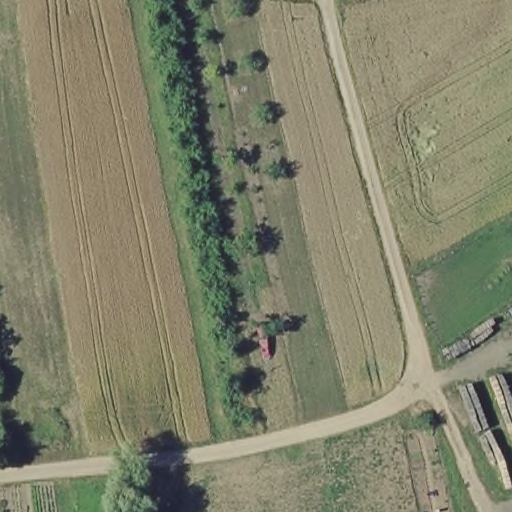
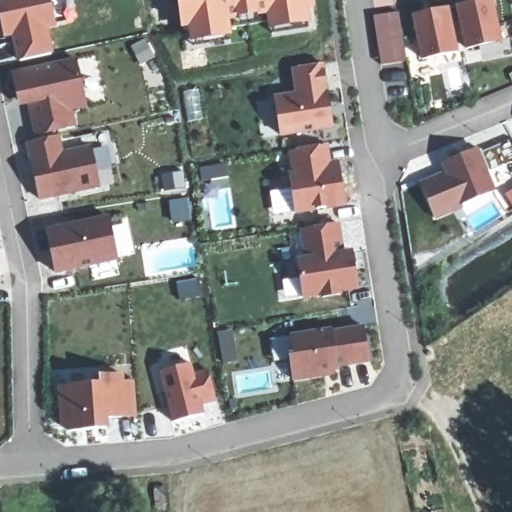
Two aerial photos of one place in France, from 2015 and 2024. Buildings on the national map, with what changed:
new [(45,26),(51,54),(20,61),(11,19),(1,21),(0,16),(0,0),(50,0),(55,24),(45,26)]
new [(306,6),(307,17),(306,18),(270,23),(270,21),(229,27),(230,30),(192,36),(190,25),(182,26),(178,0),(313,0),(314,5),(306,6)]
new [(481,0),(492,0),(492,1),(501,41),(466,49),(457,5),(475,1),(481,0)]
new [(413,15),(447,8),(456,51),(422,59),(413,15)]
new [(373,15),(398,11),(402,36),(405,61),(381,65),(377,40),(373,15)]
new [(308,28),(272,33),(271,23),(306,18),(308,28)]
new [(1,21),(11,19),(14,32),(4,34),(1,21)]
new [(193,35),(228,30),(230,40),(195,46),(193,35)]
new [(75,60),(87,108),(74,111),(78,130),(58,135),(35,140),(28,107),(18,109),(11,72),(75,60)]
new [(328,128),(280,135),(275,96),(297,93),(293,68),(322,63),(329,105),(332,127),(328,128)]
new [(58,135),(62,153),(91,146),(100,186),(40,199),(27,142),(58,135)]
new [(326,146),(328,165),(336,164),(339,185),(341,185),(345,204),(295,211),(290,174),(295,173),(291,151),(326,146)]
new [(420,183),(447,172),(443,163),(477,149),(478,151),(481,151),(489,170),(486,171),(494,191),(461,205),(462,207),(435,218),(420,183)]
new [(46,230),(108,217),(117,259),(55,273),(53,263),(51,252),(46,230)]
new [(337,223),(342,253),(347,252),(350,270),(355,270),(358,288),(340,291),(340,294),(322,297),(322,294),(303,297),(297,260),(307,258),(302,228),(337,223)]
demolished [(488,350),(475,330),(512,304),(512,333),(488,350)]
new [(331,329),(331,332),(363,327),(369,361),(337,366),(337,369),(322,371),(322,376),(293,380),(289,355),(294,354),(291,335),(331,329)]
new [(193,373),(208,369),(218,404),(205,408),(206,415),(173,424),(160,372),(191,364),(193,373)]
new [(322,371),(332,369),(333,374),(322,376),(322,371)]
new [(88,429),(68,431),(63,428),(60,386),(101,383),(100,375),(121,374),(122,382),(132,381),(135,416),(105,418),(105,425),(105,428),(88,429)]
demolished [(491,386),(512,378),(512,440),(491,386)]

